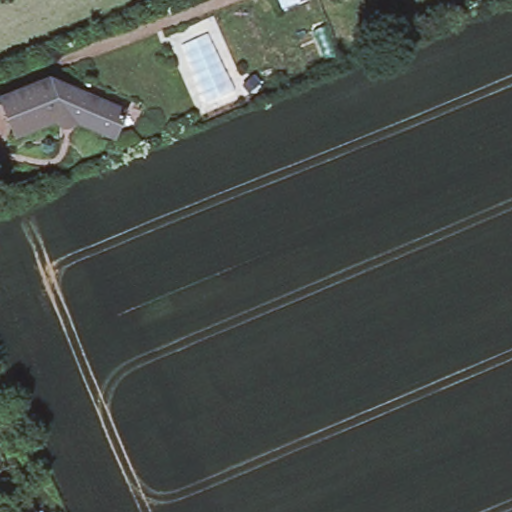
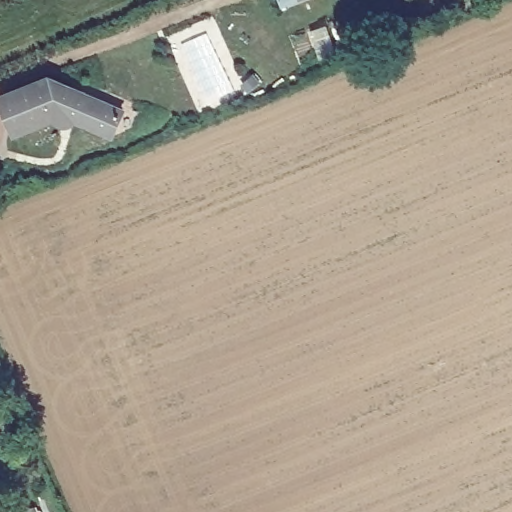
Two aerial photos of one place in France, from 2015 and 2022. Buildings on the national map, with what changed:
unchanged [(114,128),(75,118),(75,121),(73,123),(72,125),(70,127),(68,129),(65,130),(63,131),(60,131),(57,131),(55,130),(52,129),(50,126),(48,125),(46,123),(45,120),(10,134),(0,109),(0,98),(43,81),(106,96),(121,101),(116,121),(114,128)]

